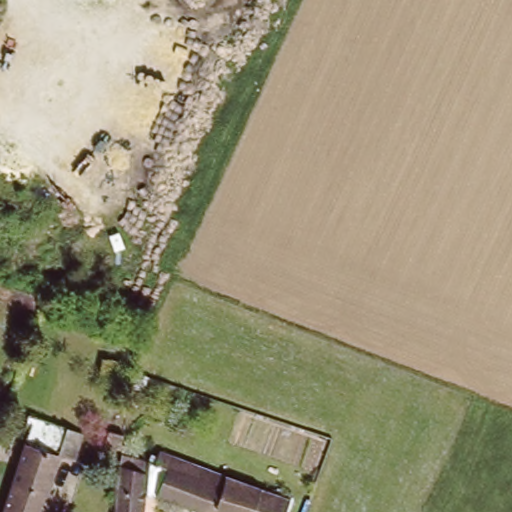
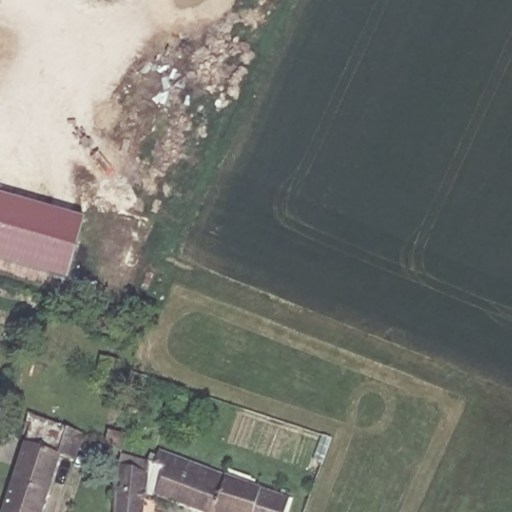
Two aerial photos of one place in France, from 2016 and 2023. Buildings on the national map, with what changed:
new [(85,219),(69,279),(0,259),(0,195),(85,219)]
unchanged [(25,420),(66,427),(62,452),(49,451),(40,512),(7,512),(25,420)]
unchanged [(129,454),(114,452),(118,437),(131,440),(129,454)]
unchanged [(123,488),(128,457),(160,468),(164,456),(188,465),(184,477),(208,486),(213,473),(233,481),(299,505),(296,512),(197,512),(166,501),(170,487),(154,482),(150,512),(121,512),(123,488)]

